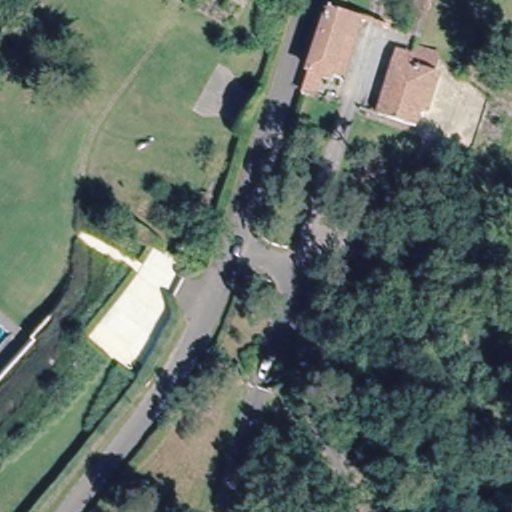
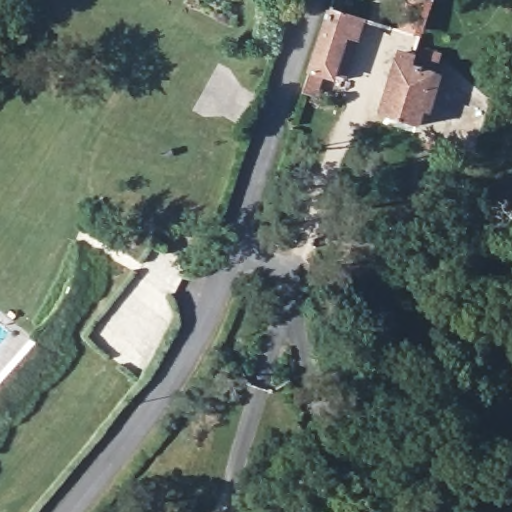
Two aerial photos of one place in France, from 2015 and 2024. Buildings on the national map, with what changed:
unchanged [(417,35),(405,32),(415,0),(429,0),(417,35)]
unchanged [(303,100),(332,16),(363,25),(342,85),(321,78),(312,103),(303,100)]
unchanged [(416,69),(435,75),(418,124),(380,111),(400,49),(419,55),(416,69)]
unchanged [(39,349),(62,368),(0,445),(0,397),(34,354),(39,349)]

